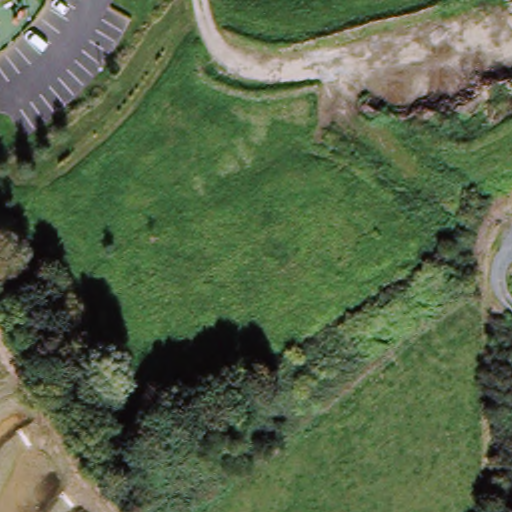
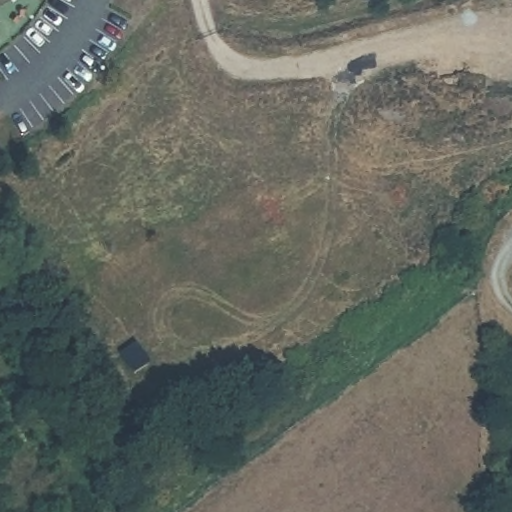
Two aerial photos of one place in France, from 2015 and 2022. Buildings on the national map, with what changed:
[]

